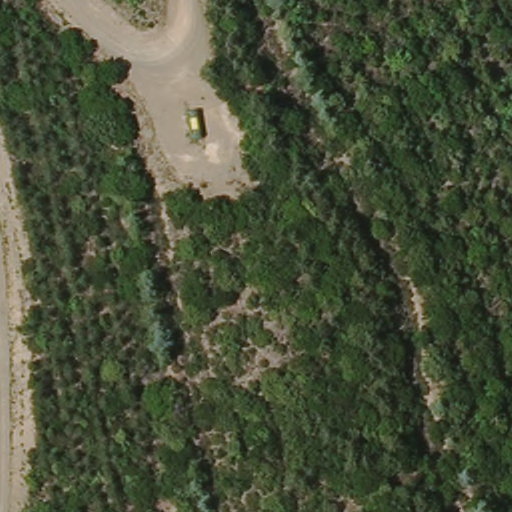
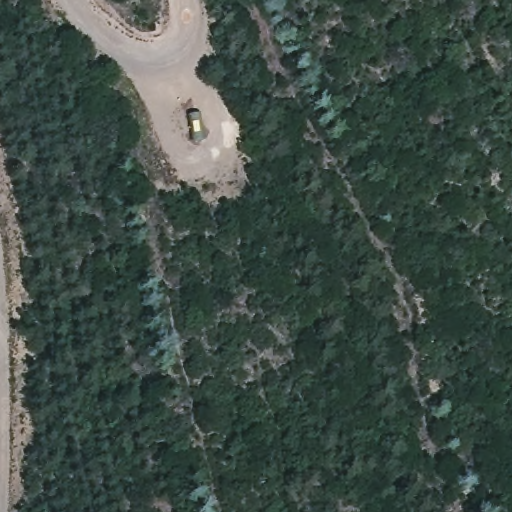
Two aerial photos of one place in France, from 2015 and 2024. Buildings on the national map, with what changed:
unchanged [(190,139),(189,122),(205,121),(205,134),(190,139)]

